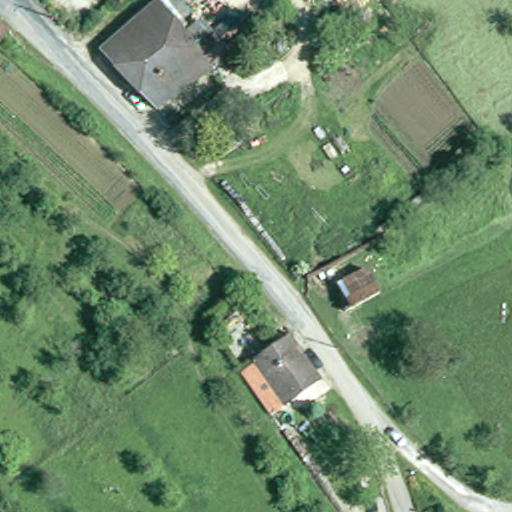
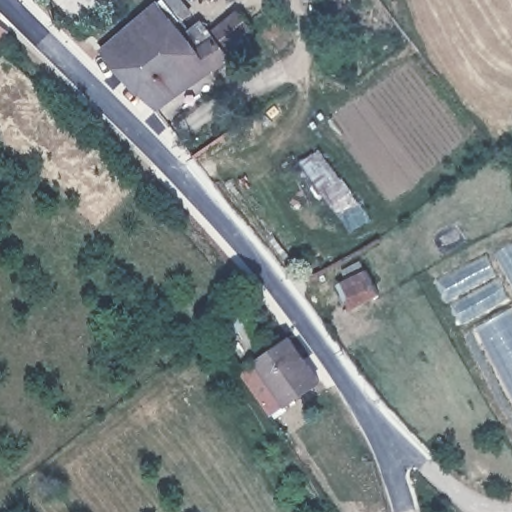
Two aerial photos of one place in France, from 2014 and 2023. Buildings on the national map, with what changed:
unchanged [(234,56),(217,68),(215,65),(157,107),(105,50),(161,0),(162,0),(202,48),(220,36),(234,56)]
demolished [(122,0),(127,0),(125,2),(122,0)]
unchanged [(5,32),(0,38),(0,28),(5,32)]
new [(512,242),(512,279),(497,250),(512,242)]
unchanged [(369,270),(381,292),(356,306),(343,284),(369,270)]
new [(512,308),(512,400),(474,328),(512,308)]
unchanged [(290,406),(259,362),(293,338),(324,382),(290,406)]

